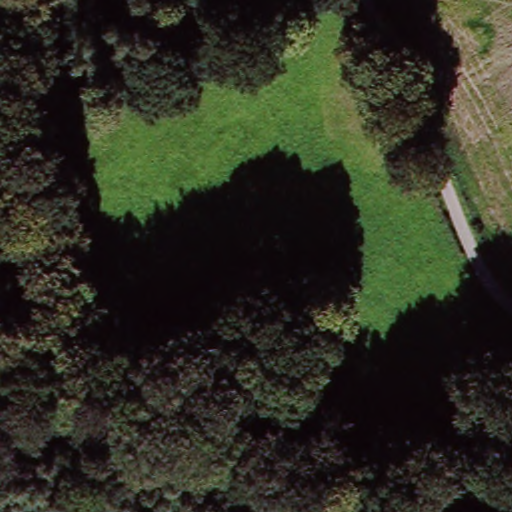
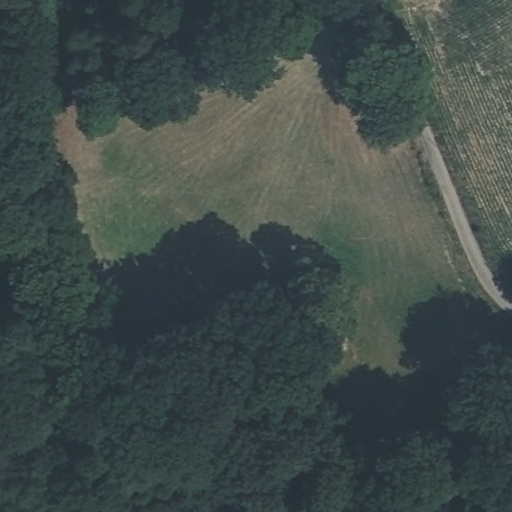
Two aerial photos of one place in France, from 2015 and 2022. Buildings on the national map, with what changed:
unchanged [(6,223),(11,244),(0,245),(0,223),(6,223)]

